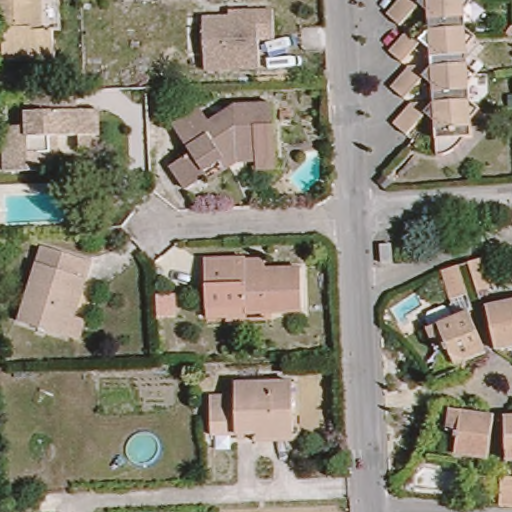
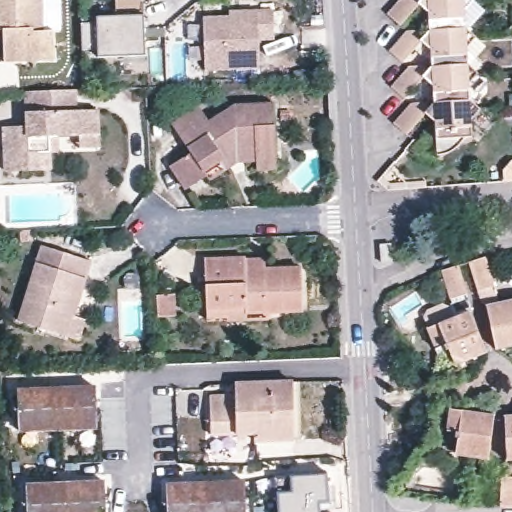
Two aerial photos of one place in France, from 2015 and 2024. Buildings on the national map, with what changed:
unchanged [(53,30),(54,61),(3,63),(2,34),(0,34),(0,0),(61,0),(62,29),(53,30)]
unchanged [(463,13),(465,28),(475,37),(466,48),(467,63),(478,73),(468,84),(469,99),(480,108),(470,122),(472,134),(462,135),(459,139),(456,142),(452,147),(447,149),(443,150),(438,150),(436,151),(434,122),(425,114),(407,132),(395,122),(412,103),(432,101),(431,86),(424,80),(406,97),(393,86),(409,67),(430,66),(428,51),(420,44),(403,61),(390,50),(406,32),(428,30),(426,15),(417,7),(399,25),(388,16),(401,0),(470,0),(472,2),(463,13)]
new [(165,40),(147,41),(147,61),(99,62),(99,53),(84,54),(83,27),(99,27),(98,21),(118,20),(118,1),(146,2),(147,32),(165,32),(165,40)]
unchanged [(273,40),(258,40),(259,69),(204,71),(202,19),(228,17),(228,12),(256,11),(272,11),(273,40)]
unchanged [(45,161),(45,179),(0,179),(0,135),(20,135),(18,102),(68,100),(70,121),(92,120),(94,143),(94,160),(74,160),(74,144),(52,145),(53,162),(45,161)]
unchanged [(275,159),(242,161),(243,156),(227,157),(200,173),(205,182),(186,195),(170,170),(189,157),(171,127),(198,112),(208,126),(236,110),(273,109),(275,159)]
unchanged [(275,176),(256,176),(256,167),(237,168),(208,187),(205,182),(200,173),(227,157),(243,156),(242,161),(275,159),(275,176)]
new [(504,169),(510,162),(512,162),(512,183),(505,184),(504,169)]
unchanged [(392,262),(382,262),(382,246),(391,246),(392,262)]
unchanged [(78,341),(63,336),(16,320),(41,247),(88,262),(70,316),(84,322),(78,341)]
unchanged [(469,262),(484,258),(493,286),(479,291),(468,263),(469,262)]
unchanged [(206,322),(205,305),(204,262),(245,260),(264,260),(265,269),(265,270),(300,268),(302,310),(244,312),(244,321),(206,322)]
unchanged [(445,262),(457,290),(442,295),(430,267),(445,262)]
unchanged [(486,342),(478,302),(512,294),(512,330),(505,340),(486,342)]
unchanged [(475,347),(455,357),(441,352),(436,341),(427,345),(417,323),(420,322),(416,312),(418,306),(432,300),(439,302),(444,312),(457,307),(475,347)]
unchanged [(252,442),(251,432),(209,433),(210,395),(235,395),(235,386),(291,383),(292,432),(293,441),(252,442)]
new [(96,386),(99,428),(19,432),(18,392),(96,386)]
unchanged [(473,467),(461,452),(462,443),(450,442),(453,418),(498,425),(492,468),(473,467)]
unchanged [(512,425),(512,469),(510,425),(512,425)]
new [(292,492),(290,476),(326,475),(329,502),(318,503),(318,512),(281,512),(280,495),(292,492)]
unchanged [(472,504),(473,477),(489,477),(489,505),(472,504)]
unchanged [(503,477),(512,478),(512,506),(502,505),(503,477)]
new [(104,481),(105,512),(29,512),(28,485),(104,481)]
new [(246,484),(247,512),(168,512),(168,486),(246,484)]

